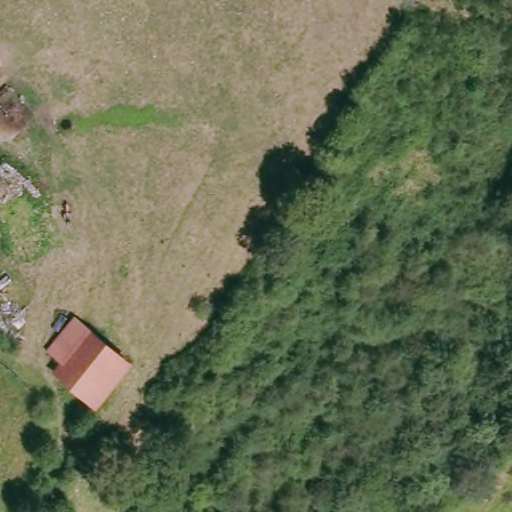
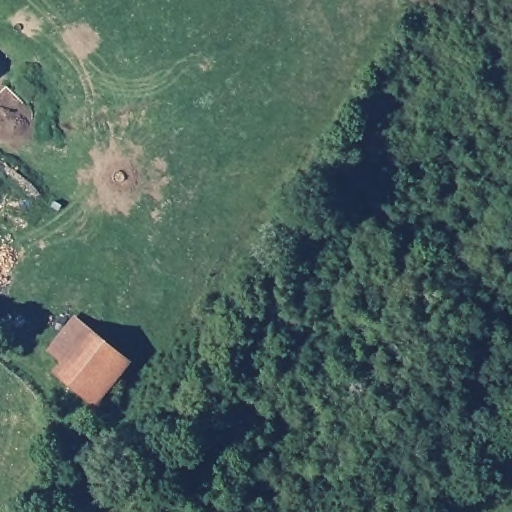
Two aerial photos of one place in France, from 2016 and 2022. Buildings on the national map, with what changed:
unchanged [(82,316),(132,360),(96,403),(60,371),(71,361),(56,347),(82,316)]

